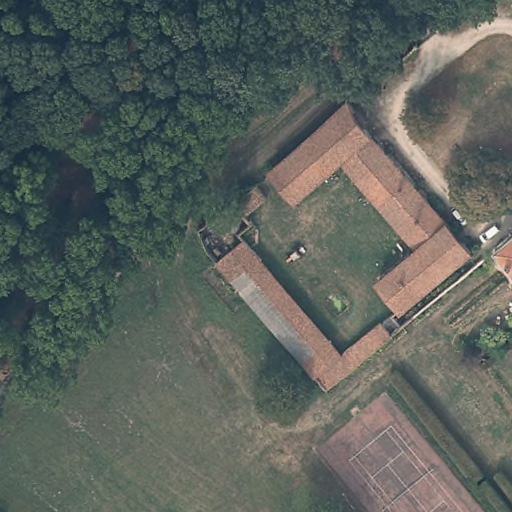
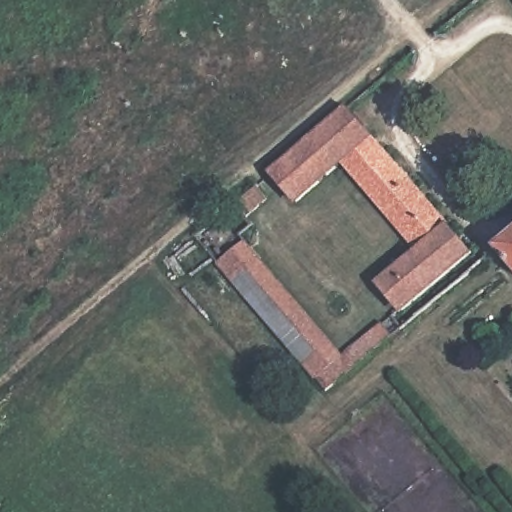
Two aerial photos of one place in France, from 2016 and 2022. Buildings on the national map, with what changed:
unchanged [(470,251),(403,305),(379,276),(415,246),(339,159),(292,197),(267,168),(344,104),(470,251)]
unchanged [(257,186),(267,199),(249,214),(256,222),(242,234),(267,265),(238,290),(194,240),(257,186)]
unchanged [(491,246),(512,230),(512,273),(491,246)]
unchanged [(267,265),(344,353),(315,375),(238,290),(267,265)]
unchanged [(326,387),(315,375),(344,353),(395,315),(405,326),(326,387)]

